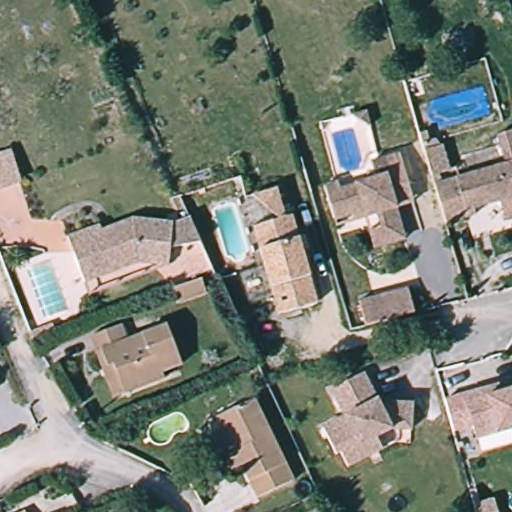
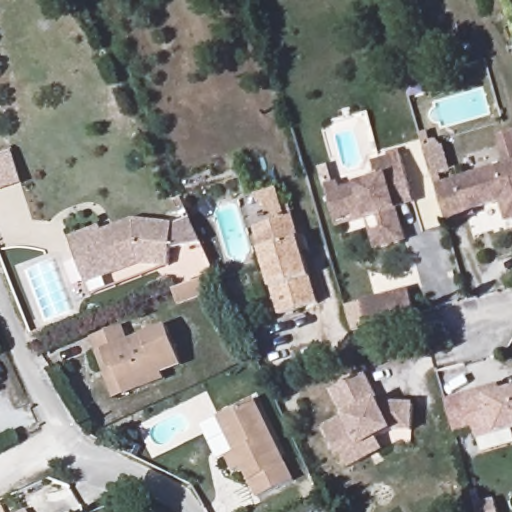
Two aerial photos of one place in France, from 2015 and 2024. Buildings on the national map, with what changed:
unchanged [(425,132),(433,159),(415,164),(407,137),(425,132)]
unchanged [(501,137),(512,134),(512,232),(504,205),(473,215),(475,221),(450,230),(437,187),(509,166),(501,137)]
unchanged [(21,185),(0,191),(0,154),(12,150),(21,185)]
unchanged [(375,256),(364,222),(340,228),(327,188),(344,184),(346,192),(378,184),(374,165),(401,159),(413,205),(398,210),(409,247),(375,256)]
unchanged [(282,190),(287,220),(299,217),(324,306),(284,317),(258,232),(278,226),(274,213),(258,196),(282,190)]
unchanged [(133,262),(82,282),(66,234),(95,222),(97,227),(128,215),(168,220),(187,214),(197,241),(166,246),(164,265),(133,262)]
unchanged [(195,297),(166,307),(159,291),(189,280),(195,297)]
unchanged [(363,305),(412,293),(419,318),(369,330),(363,305)]
unchanged [(123,403),(97,345),(125,334),(132,349),(174,332),(187,363),(169,372),(172,381),(123,403)]
unchanged [(340,461),(327,465),(316,436),(335,427),(322,400),(351,385),(367,417),(379,408),(400,410),(396,457),(381,458),(347,475),(340,461)]
unchanged [(505,399),(512,397),(512,431),(484,439),(471,394),(501,385),(505,399)]
unchanged [(300,483),(265,498),(251,469),(237,475),(229,456),(214,420),(227,415),(261,398),(300,483)]
unchanged [(480,490),(486,512),(465,512),(461,496),(480,490)]

